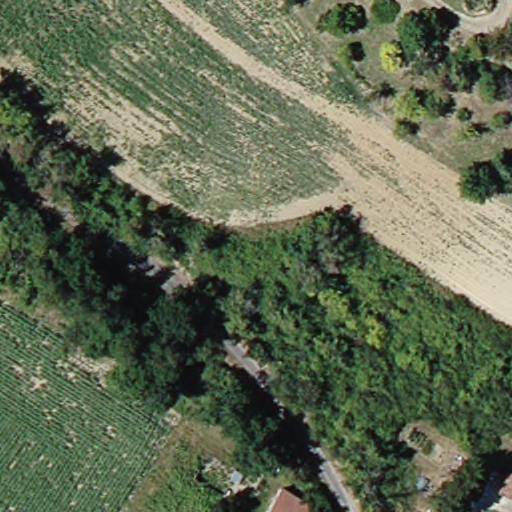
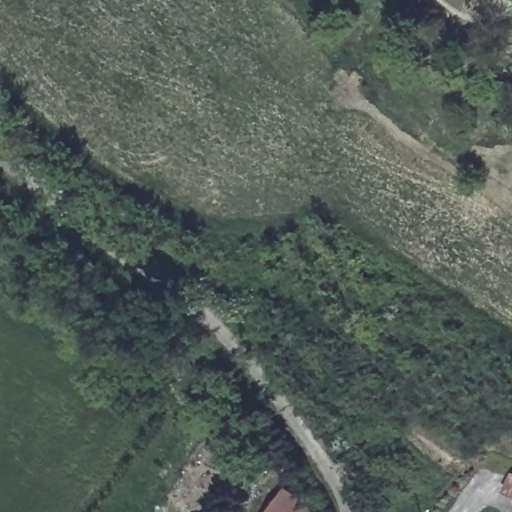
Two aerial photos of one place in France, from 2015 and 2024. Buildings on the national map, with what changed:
unchanged [(512,489),(512,493),(510,492),(512,489)]
unchanged [(323,512),(277,512),(290,492),(323,512)]

